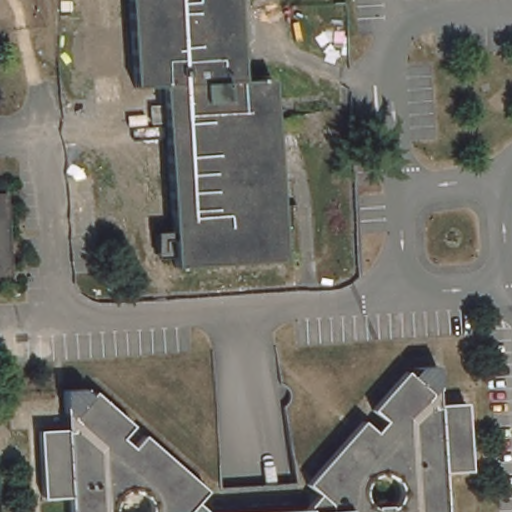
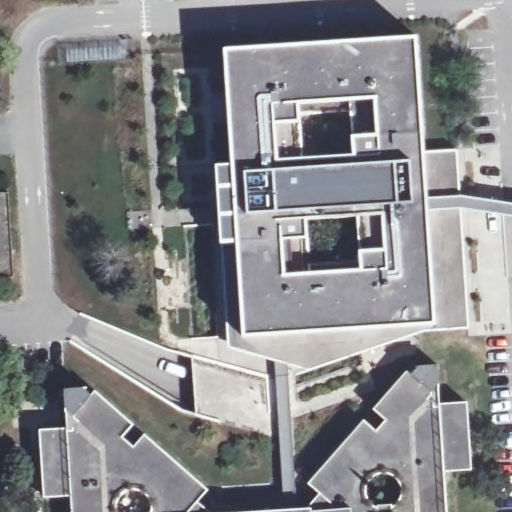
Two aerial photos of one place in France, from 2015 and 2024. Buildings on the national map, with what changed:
demolished [(151,120),(149,102),(165,100),(164,82),(135,83),(130,0),(240,0),(245,74),(274,73),(277,114),(325,104),(329,121),(277,131),(287,255),(175,263),(167,119),(151,120)]
new [(417,37),(424,152),(434,325),(243,338),(237,245),(222,246),(217,166),(232,165),(224,50),(417,37)]
new [(125,46),(126,58),(69,62),(68,50),(125,46)]
new [(229,348),(222,246),(237,245),(243,338),(434,325),(424,152),(457,150),(460,196),(461,209),(469,330),(423,332),(309,371),(229,348)]
unchanged [(0,277),(0,193),(10,193),(15,276),(0,277)]
new [(512,204),(512,217),(461,209),(460,196),(512,204)]
unchanged [(320,494),(309,484),(365,421),(388,442),(398,431),(375,411),(409,372),(410,374),(416,367),(440,366),(440,389),(436,385),(430,391),(435,394),(429,400),(435,405),(442,404),(469,403),(473,470),(446,472),(448,512),(247,512),(307,509),(320,494)]
unchanged [(46,498),(42,431),(69,429),(75,428),(80,423),(74,418),(77,414),(72,409),(67,413),(65,388),(88,387),(94,392),(96,391),(134,425),(114,448),(125,458),(145,435),(208,491),(198,502),(210,512),(74,512),(72,497),(46,498)]

